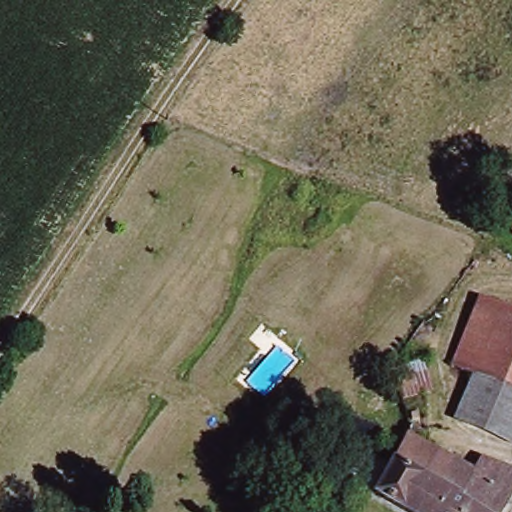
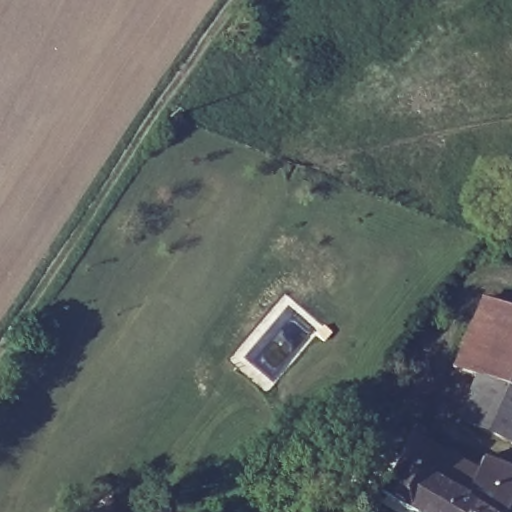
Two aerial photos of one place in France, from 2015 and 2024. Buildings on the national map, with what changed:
unchanged [(449,363),(474,297),(512,313),(512,429),(510,435),(453,415),(470,371),(449,363)]
unchanged [(431,389),(396,400),(391,365),(422,355),(431,389)]
unchanged [(456,501),(390,462),(408,430),(401,400),(423,393),(427,410),(416,412),(420,431),(431,436),(425,446),(473,472),(456,501)]
unchanged [(499,512),(405,512),(372,493),(390,462),(456,501),(473,472),(481,458),(512,470),(512,491),(499,512)]

